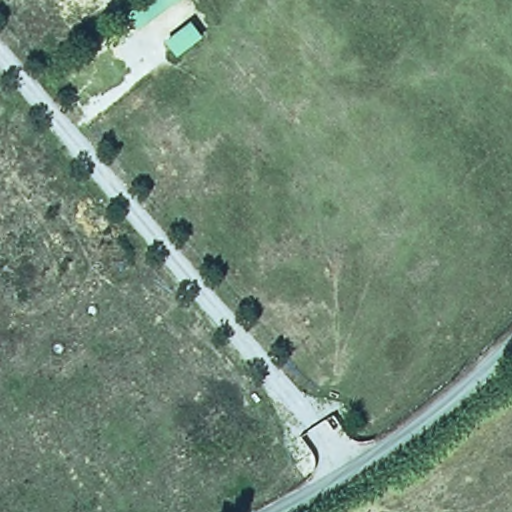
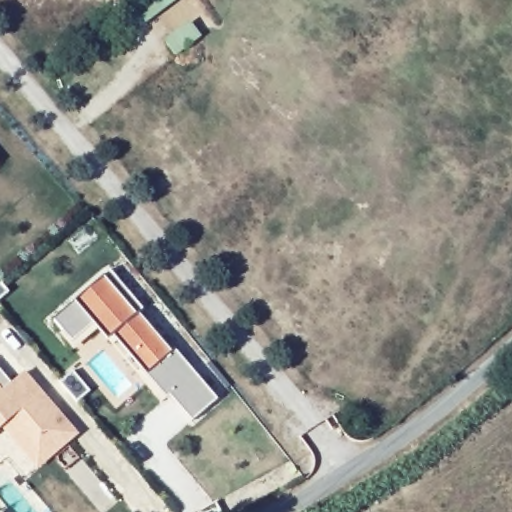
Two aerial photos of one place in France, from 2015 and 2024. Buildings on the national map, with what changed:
unchanged [(137,0),(151,0),(163,14),(135,32),(119,15),(137,0)]
unchanged [(161,37),(185,18),(201,41),(177,62),(161,37)]
new [(54,319),(74,302),(104,276),(110,270),(142,309),(139,312),(172,352),(174,350),(217,400),(191,422),(167,396),(161,402),(137,372),(141,368),(112,336),(107,340),(97,330),(73,350),(60,334),(62,331),(54,319)]
new [(36,471),(1,428),(0,428),(0,371),(11,383),(25,372),(79,435),(36,471)]

